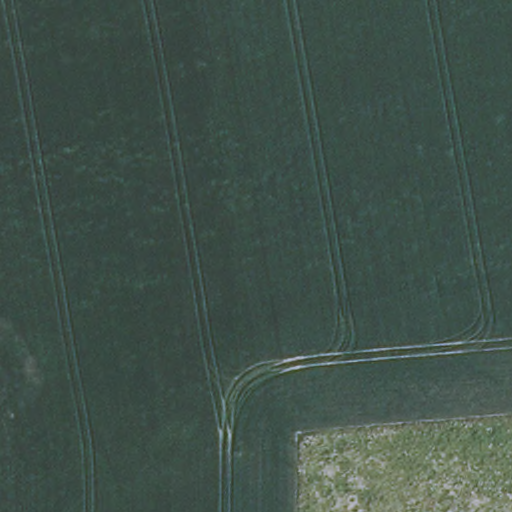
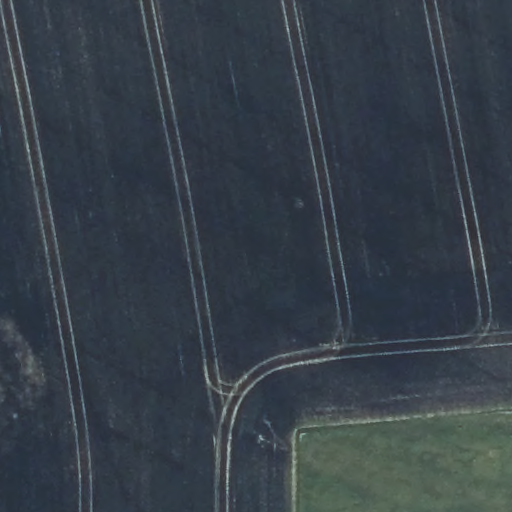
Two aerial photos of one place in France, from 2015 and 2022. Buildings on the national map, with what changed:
[]

